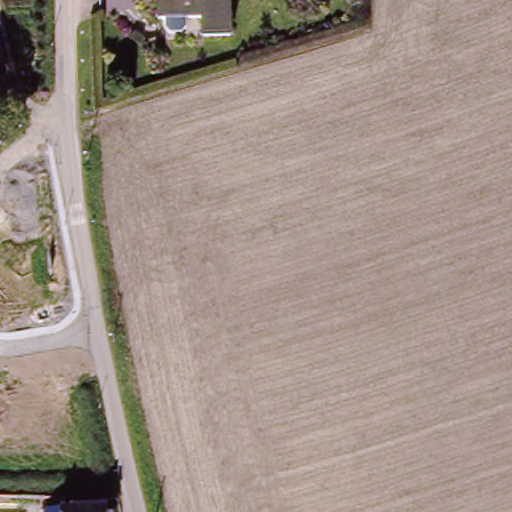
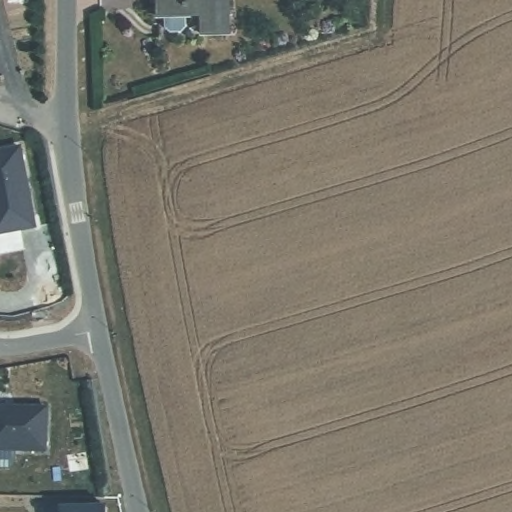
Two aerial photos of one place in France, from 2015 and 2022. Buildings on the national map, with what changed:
unchanged [(209,36),(207,15),(165,17),(164,0),(234,0),(236,34),(209,36)]
new [(20,147),(35,227),(0,233),(0,151),(20,147)]
new [(49,413),(48,456),(0,456),(0,413),(49,413)]
unchanged [(39,507),(101,502),(101,512),(39,512),(39,507)]

